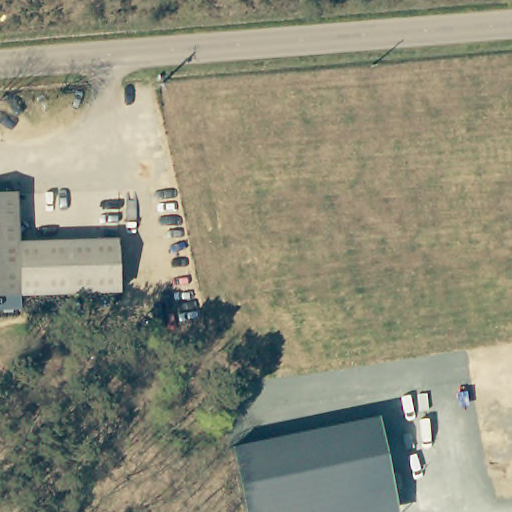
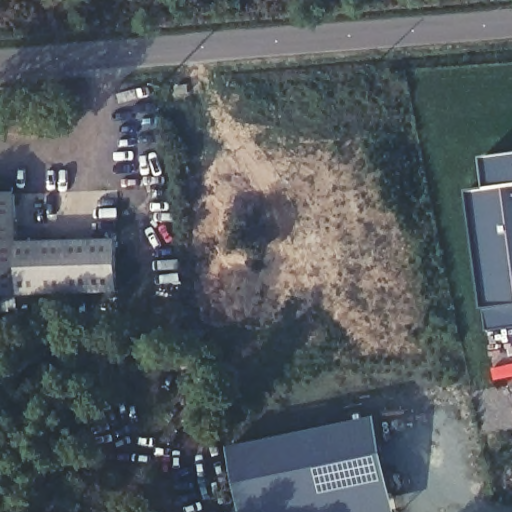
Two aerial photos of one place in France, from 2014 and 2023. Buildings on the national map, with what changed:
new [(470,193),(488,191),(485,161),(512,157),(512,306),(486,310),(470,193)]
unchanged [(114,243),(116,298),(0,302),(0,200),(16,200),(18,246),(114,243)]
unchanged [(379,419),(397,512),(244,512),(232,450),(379,419)]

